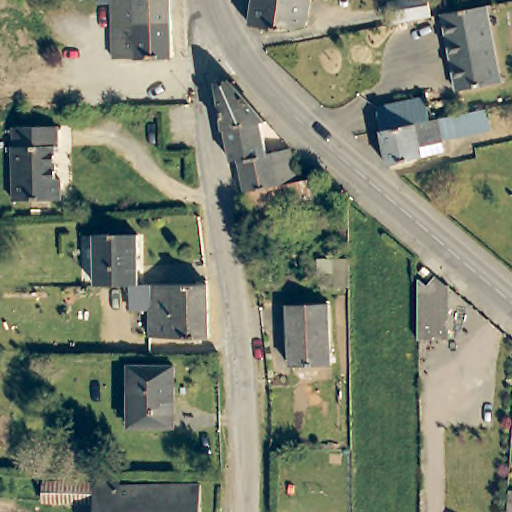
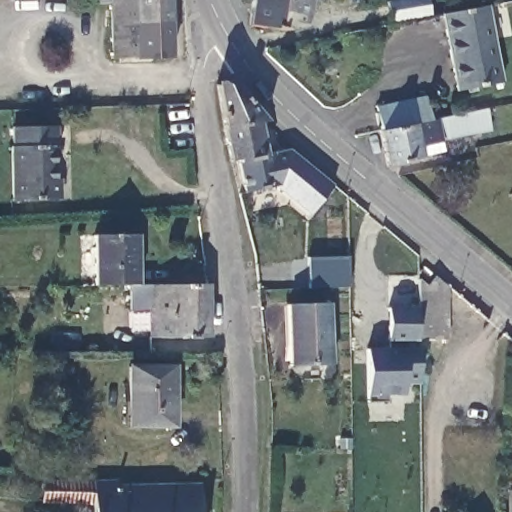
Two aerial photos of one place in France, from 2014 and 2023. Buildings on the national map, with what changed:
unchanged [(116,25),(116,1),(104,1),(104,0),(173,0),(173,24),(116,25)]
unchanged [(275,0),(305,5),(301,25),(274,29),(245,21),(250,0),(275,0)]
unchanged [(275,0),(306,0),(305,5),(275,0)]
unchanged [(355,0),(337,2),(337,0),(355,0)]
unchanged [(430,0),(435,20),(391,28),(390,5),(421,0),(430,0)]
unchanged [(490,5),(496,37),(450,45),(445,12),(449,11),(490,5)]
unchanged [(115,59),(116,25),(173,24),(174,58),(115,59)]
unchanged [(504,80),(457,88),(450,45),(496,37),(504,80)]
unchanged [(240,156),(238,150),(230,82),(237,81),(269,115),(274,151),(246,155),(240,156)]
demolished [(107,109),(81,110),(80,105),(59,105),(59,94),(78,94),(105,90),(107,109)]
unchanged [(370,104),(419,95),(423,119),(375,127),(370,104)]
demolished [(48,100),(55,100),(55,109),(48,109),(48,100)]
unchanged [(488,106),(491,130),(468,135),(470,146),(436,153),(430,117),(488,106)]
unchanged [(423,119),(430,117),(436,153),(381,164),(375,127),(423,119)]
unchanged [(14,122),(57,122),(57,152),(54,152),(54,182),(59,182),(60,195),(12,195),(11,141),(14,141),(14,122)]
unchanged [(297,148),(302,182),(253,189),(252,189),(246,155),(274,151),(297,148)]
unchanged [(326,200),(256,210),(253,189),(302,182),(324,180),(326,200)]
unchanged [(156,302),(135,302),(97,303),(98,282),(97,253),(96,234),(119,234),(140,234),(140,251),(140,281),(212,280),(212,335),(156,335),(156,302)]
unchanged [(351,260),(350,290),(315,289),(316,258),(351,260)]
unchanged [(430,275),(425,280),(418,275),(415,272),(421,268),(423,270),(430,275)]
unchanged [(415,280),(424,287),(432,277),(446,287),(446,340),(415,340),(415,280)]
unchanged [(290,366),(288,305),(328,305),(330,366),(290,366)]
new [(415,333),(415,340),(419,340),(420,383),(405,385),(403,395),(385,395),(385,403),(363,403),(365,348),(386,347),(386,307),(415,306),(415,333)]
unchanged [(130,425),(130,367),(174,367),(174,424),(130,425)]
unchanged [(100,480),(99,505),(40,505),(41,480),(100,480)]
unchanged [(169,512),(99,512),(99,505),(100,480),(124,480),(124,484),(169,483),(169,512)]
unchanged [(169,483),(206,483),(206,512),(169,512),(169,483)]
unchanged [(510,497),(512,498),(512,512),(509,512),(510,497)]

